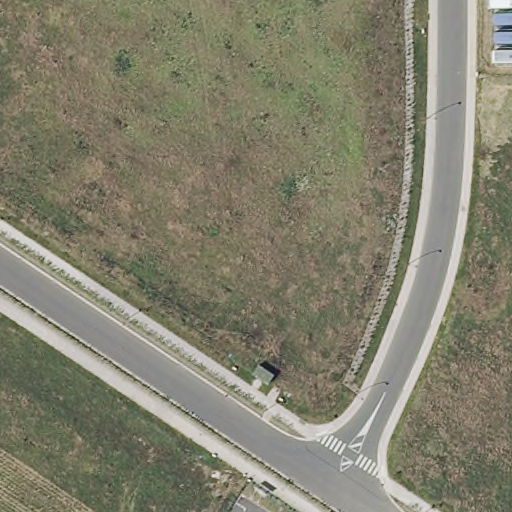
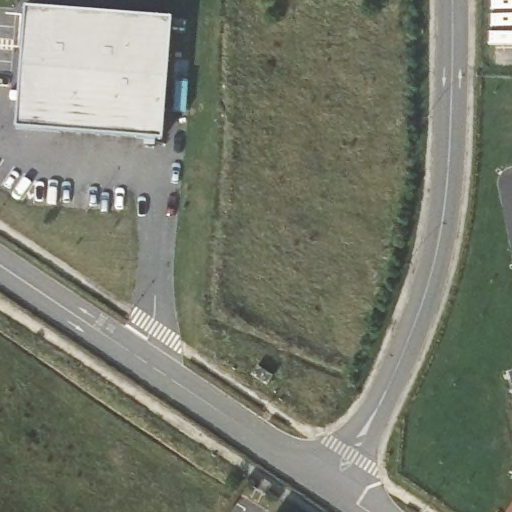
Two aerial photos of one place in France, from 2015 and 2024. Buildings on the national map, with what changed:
new [(25,6),(173,17),(164,139),(17,128),(25,6)]

